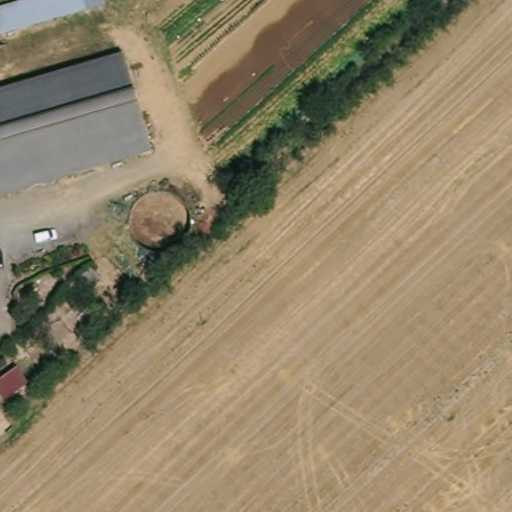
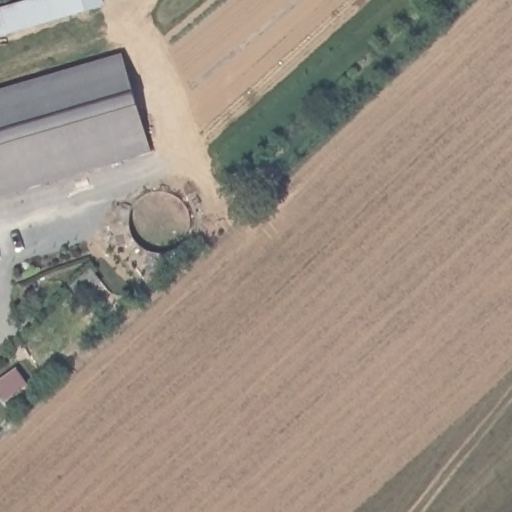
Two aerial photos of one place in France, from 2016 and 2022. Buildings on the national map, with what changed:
unchanged [(32,0),(81,0),(84,11),(0,37),(0,10),(32,0)]
unchanged [(113,55),(143,153),(0,197),(0,90),(113,55)]

